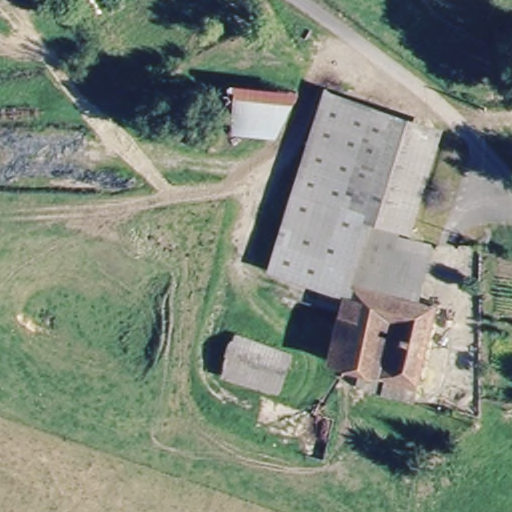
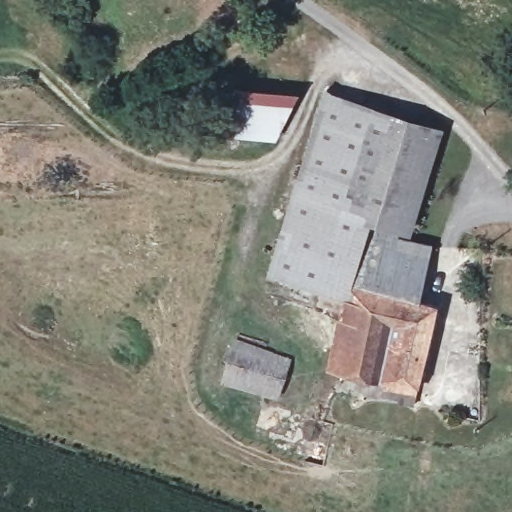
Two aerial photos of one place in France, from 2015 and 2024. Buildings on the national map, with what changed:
unchanged [(234,90),(297,89),(295,142),(233,133),(234,90)]
unchanged [(434,308),(413,408),(351,397),(354,375),(326,367),(341,300),(272,277),(324,104),(371,118),(342,213),(364,222),(356,254),(346,287),(409,302),(434,308)]
unchanged [(435,137),(406,234),(364,222),(342,213),(371,118),(435,137)]
unchanged [(346,287),(356,254),(380,258),(380,250),(423,256),(409,302),(346,287)]
unchanged [(274,393),(222,379),(234,342),(286,358),(274,393)]

